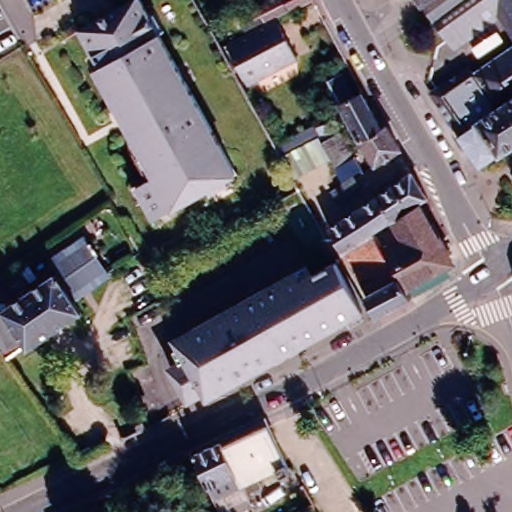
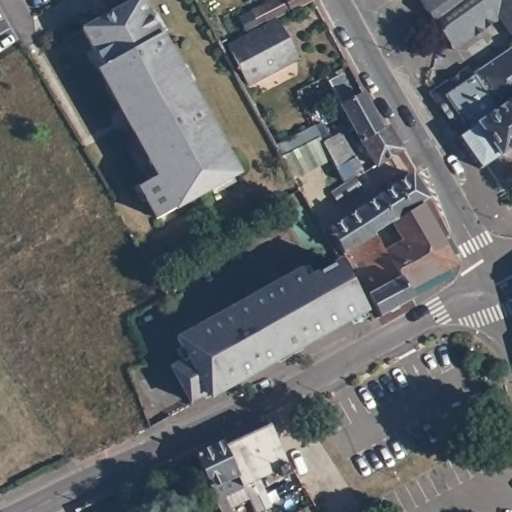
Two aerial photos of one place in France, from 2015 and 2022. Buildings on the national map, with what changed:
unchanged [(140,182),(158,172),(134,129),(92,53),(98,49),(85,26),(131,0),(143,0),(238,170),(158,214),(140,182)]
unchanged [(416,0),(434,0),(422,8),(416,0)]
unchanged [(451,52),(422,8),(434,0),(512,0),(512,28),(505,16),(451,52)]
unchanged [(260,48),(266,45),(259,29),(280,18),(305,5),(313,21),(288,34),(271,42),(290,77),(247,99),(228,65),(260,48)]
unchanged [(498,154),(478,166),(457,135),(460,132),(431,90),(467,66),(474,76),(512,51),(512,147),(500,155),(498,154)]
unchanged [(380,166),(366,144),(332,87),(337,84),(345,80),(357,101),(368,95),(387,129),(391,127),(404,151),(396,156),(380,166)]
unchanged [(337,204),(331,192),(343,185),(330,161),(330,160),(320,143),(333,135),(331,131),(336,127),(362,174),(355,178),(362,189),(337,204)]
unchanged [(285,142),(310,128),(328,161),(303,174),(285,142)]
unchanged [(440,270),(402,292),(406,300),(372,319),(362,297),(364,296),(339,253),(325,230),(338,221),(354,211),(374,197),(408,175),(422,199),(416,203),(445,256),(440,270)]
demolished [(0,349),(0,310),(56,273),(57,274),(67,269),(59,259),(84,242),(87,246),(92,243),(99,254),(94,256),(107,275),(74,298),(85,315),(30,352),(26,346),(8,359),(0,349)]
unchanged [(187,401),(169,367),(186,358),(175,338),(303,266),(309,276),(334,262),(344,280),(346,284),(361,310),(326,330),(296,346),(298,350),(275,363),(273,359),(257,368),(224,387),(207,397),(204,392),(187,401)]
unchanged [(226,505),(229,512),(217,512),(193,454),(207,448),(266,421),(287,467),(289,471),(281,475),(277,466),(241,483),(247,495),(226,505)]
unchanged [(78,508),(79,512),(69,512),(78,508)]

